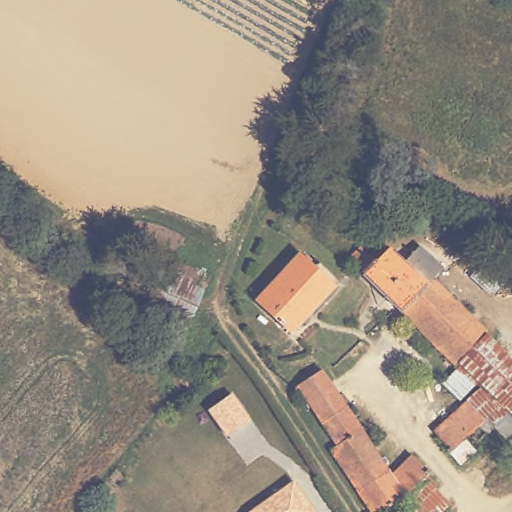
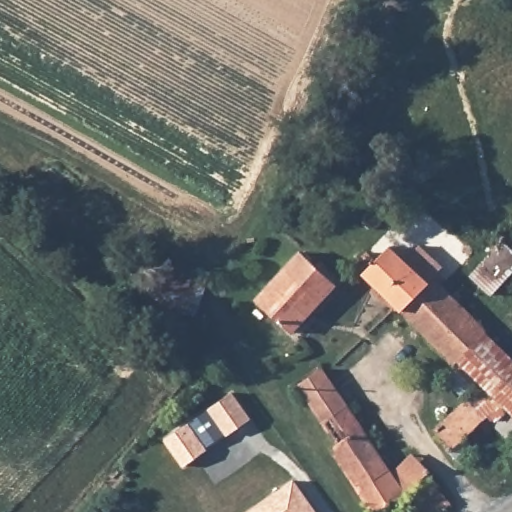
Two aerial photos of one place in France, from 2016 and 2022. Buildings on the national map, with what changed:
unchanged [(474,273),(506,238),(512,243),(512,268),(492,290),(474,273)]
unchanged [(139,300),(161,246),(188,257),(209,266),(200,291),(188,320),(142,302),(139,300)]
unchanged [(330,277),(334,281),(289,329),(254,296),(299,246),(317,262),(321,258),(330,267),(335,271),(330,277)]
unchanged [(358,273),(350,266),(342,258),(353,246),(362,253),(370,260),(383,247),(399,261),(413,246),(438,268),(429,279),(484,333),(482,335),(512,364),(512,422),(503,413),(493,403),(476,387),(472,383),(455,399),(439,382),(454,366),(358,273)]
unchanged [(322,370),(323,369),(393,474),(413,456),(427,474),(382,512),(370,512),(330,451),(336,445),(297,388),(296,386),(322,370)]
unchanged [(429,430),(476,387),(493,403),(503,413),(490,424),(483,433),(472,425),(459,437),(471,451),(456,465),(445,451),(429,430)]
unchanged [(227,437),(207,409),(233,392),(252,420),(227,437)]
new [(188,422),(207,449),(182,467),(164,440),(188,422)]
unchanged [(440,512),(382,512),(427,474),(450,503),(440,511),(440,512)]
unchanged [(250,512),(294,479),(318,512),(250,512)]

